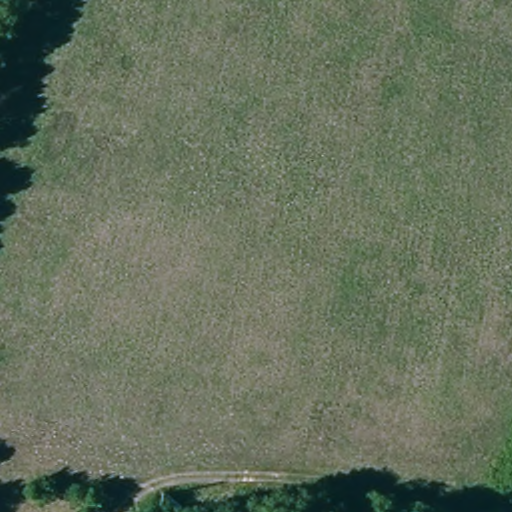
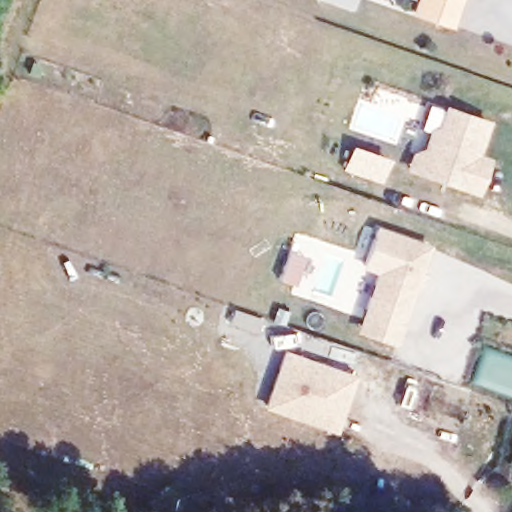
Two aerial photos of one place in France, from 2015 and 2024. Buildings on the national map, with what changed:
new [(451,26),(409,11),(413,0),(460,0),(451,26)]
new [(478,154),(490,156),(477,194),(459,186),(405,168),(411,150),(422,145),(427,127),(436,124),(443,103),(489,119),(478,154)]
new [(341,169),(349,143),(389,156),(380,181),(341,169)]
new [(374,271),(360,267),(374,224),(430,244),(421,272),(427,275),(421,288),(415,286),(395,345),(354,330),(374,271)]
new [(261,407),(282,349),(355,375),(334,432),(261,407)]

